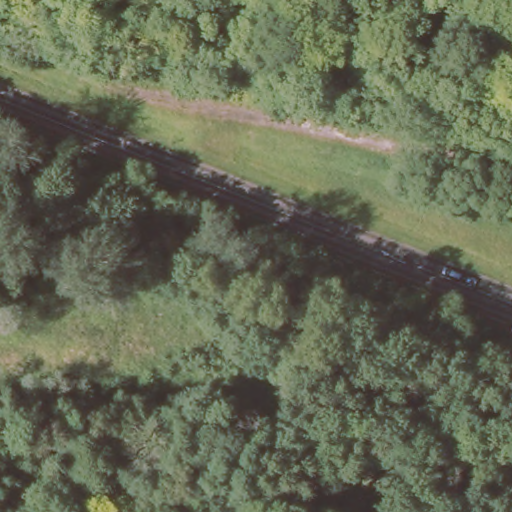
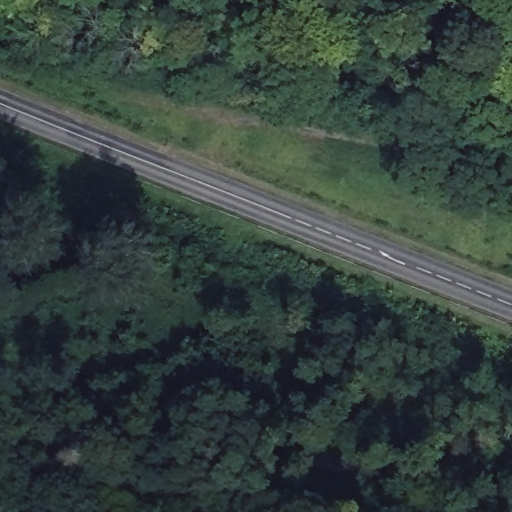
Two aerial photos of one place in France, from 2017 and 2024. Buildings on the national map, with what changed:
[]

